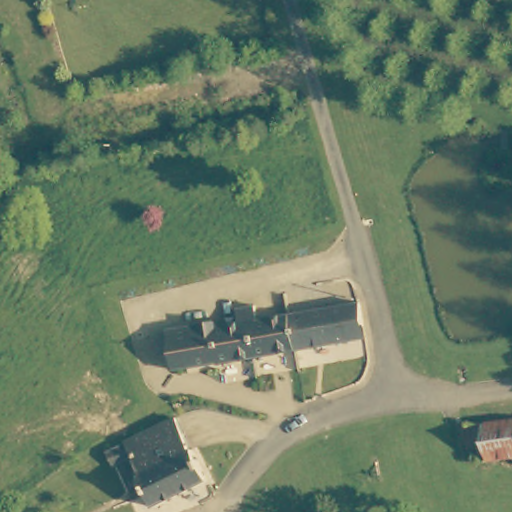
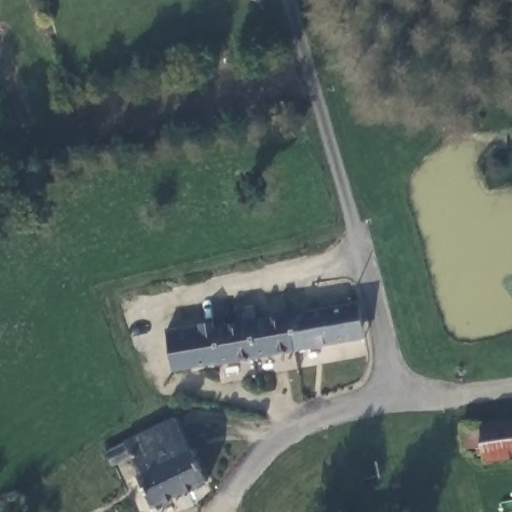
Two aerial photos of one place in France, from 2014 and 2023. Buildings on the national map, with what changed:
unchanged [(273,357),(265,304),(268,303),(270,319),(309,313),(315,350),(273,357)]
unchanged [(180,326),(227,320),(227,325),(252,323),(250,306),(265,304),(273,357),(192,367),(185,368),(185,364),(180,326)]
unchanged [(369,342),(315,350),(309,313),(363,304),(367,329),(369,342)]
unchanged [(133,462),(117,469),(111,457),(127,447),(182,422),(197,456),(199,456),(213,490),(161,512),(156,512),(155,510),(145,488),(145,478),(137,461),(133,462)]
unchanged [(488,453),(468,454),(466,428),(486,426),(512,423),(512,464),(489,464),(488,453)]

